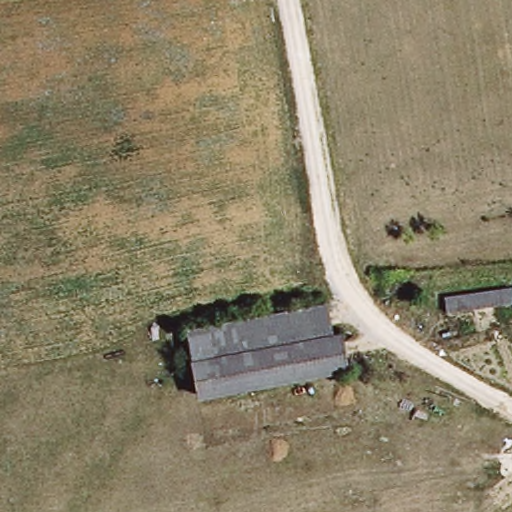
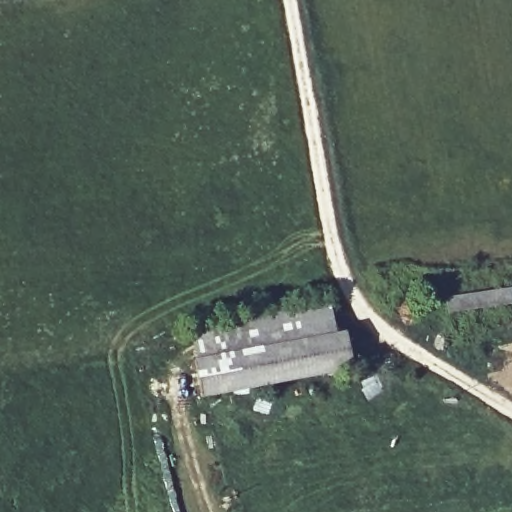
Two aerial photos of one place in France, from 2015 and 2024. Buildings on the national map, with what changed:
unchanged [(512,288),(512,303),(457,311),(455,296),(512,288)]
unchanged [(203,355),(199,323),(332,303),(337,335),(203,355)]
unchanged [(337,335),(349,333),(355,371),(209,393),(203,355),(337,335)]

